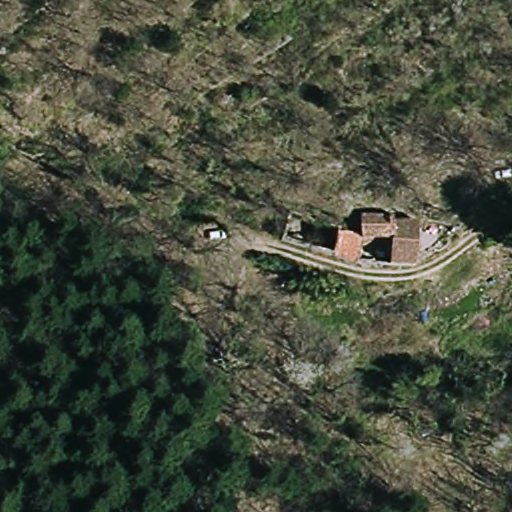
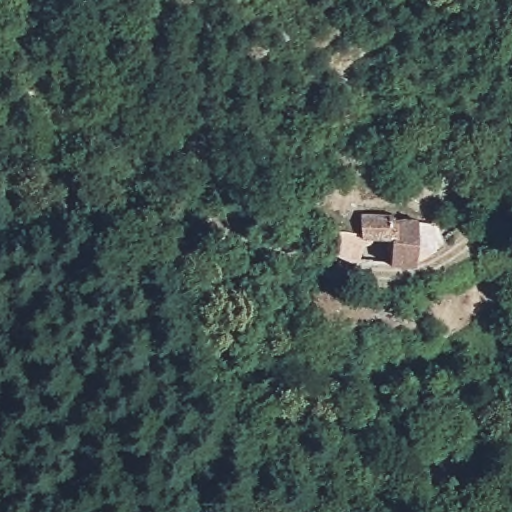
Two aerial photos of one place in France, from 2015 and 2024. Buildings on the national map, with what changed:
unchanged [(403,215),(428,217),(428,257),(398,261),(398,229),(366,229),(366,207),(403,208),(403,215)]
unchanged [(337,252),(338,230),(366,229),(365,261),(337,252)]

